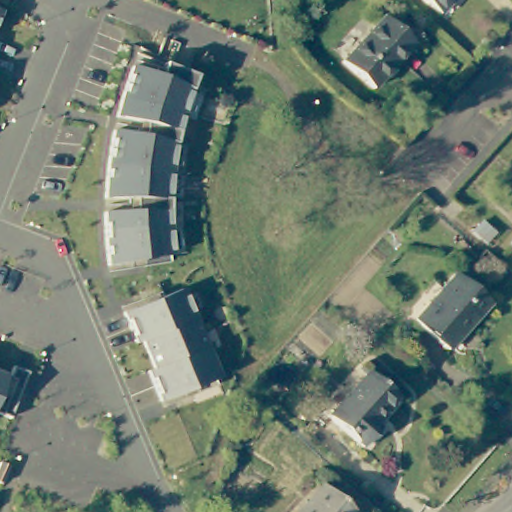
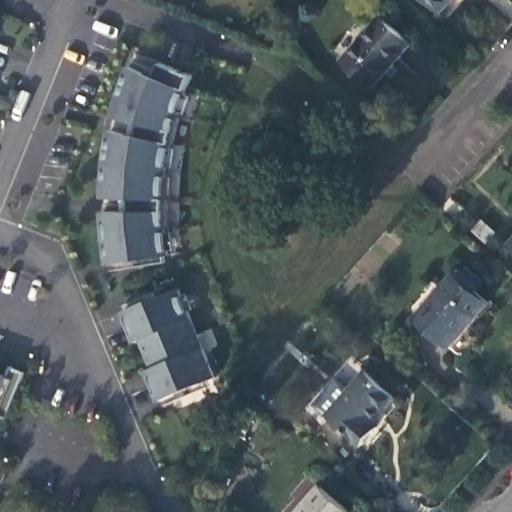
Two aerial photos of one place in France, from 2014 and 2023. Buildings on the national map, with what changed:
unchanged [(435,16),(418,0),(450,0),(435,16)]
unchanged [(380,19),(409,45),(370,91),(340,64),(380,19)]
unchanged [(196,69),(193,75),(192,80),(190,85),(188,89),(186,94),(185,99),(181,109),(184,110),(178,138),(174,138),(173,142),(172,147),(172,152),(171,157),(170,165),(169,172),(169,177),(168,182),(168,187),(168,192),(172,192),(172,221),(169,221),(170,232),(170,237),(171,242),(172,247),(172,249),(111,259),(109,250),(108,240),(107,230),(106,221),(106,216),(106,206),(136,205),(136,192),(106,192),(106,186),(107,176),(107,166),(108,161),(108,156),(110,146),(110,141),(111,136),(113,126),(113,124),(143,130),(146,118),(116,111),(117,107),(120,97),(121,92),(124,83),(128,73),(131,64),(133,60),(159,70),(164,57),(196,69)]
unchanged [(457,276),(491,305),(451,351),(417,321),(457,276)]
unchanged [(182,282),(219,371),(163,395),(150,364),(157,362),(145,333),(138,336),(126,306),(182,282)]
unchanged [(9,372),(14,361),(29,367),(10,413),(0,409),(0,369),(9,372)]
unchanged [(367,371),(395,395),(371,422),(377,427),(362,444),(328,414),(367,371)]
unchanged [(11,461),(5,477),(0,475),(0,460),(1,457),(11,461)]
unchanged [(297,512),(321,485),(352,512),(297,512)]

